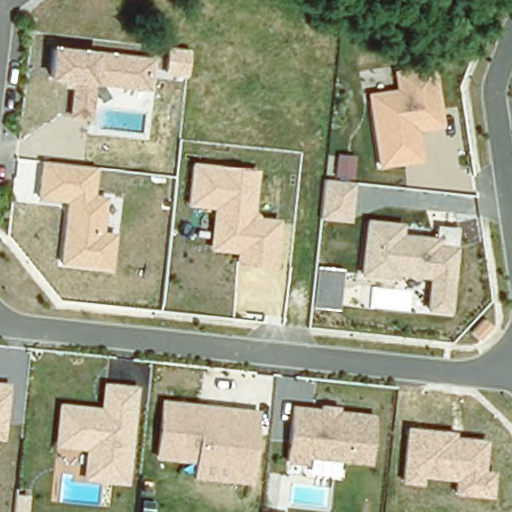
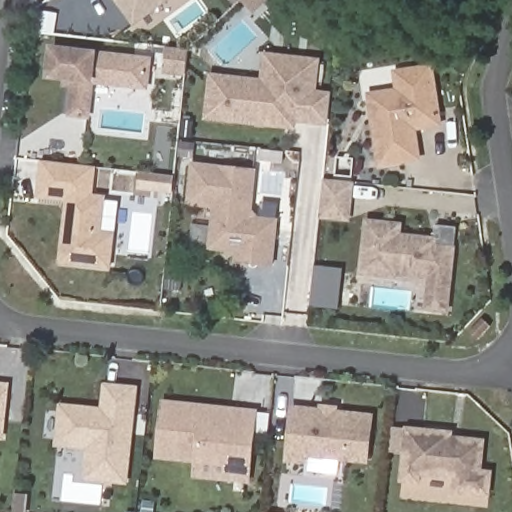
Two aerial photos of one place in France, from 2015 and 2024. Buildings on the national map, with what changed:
new [(149,13),(134,24),(116,0),(156,0),(145,8),(149,13)]
unchanged [(149,91),(95,86),(90,120),(66,118),(69,83),(46,81),(50,46),(154,57),(149,91)]
new [(165,50),(185,52),(183,77),(163,74),(165,50)]
new [(295,123),(295,129),(205,120),(209,72),(261,78),(264,53),(320,59),(317,90),(333,92),(328,127),(295,123)]
unchanged [(441,129),(416,132),(420,160),(377,167),(365,93),(395,89),(391,67),(431,62),(441,129)]
unchanged [(348,223),(316,218),(321,180),(334,182),(337,156),(354,158),(348,223)]
unchanged [(104,229),(116,232),(112,269),(58,264),(65,201),(35,198),(42,159),(96,166),(91,193),(106,195),(104,229)]
unchanged [(278,265),(234,260),(233,253),(207,249),(210,209),(185,205),(191,163),(257,171),(254,212),(258,212),(257,217),(279,219),(278,265)]
unchanged [(449,314),(421,310),(425,278),(395,275),(396,280),(360,276),(366,218),(403,222),(400,231),(432,236),(433,225),(457,227),(449,314)]
new [(313,268),(328,270),(338,271),(334,311),(310,308),(311,289),(313,268)]
unchanged [(2,440),(0,440),(0,383),(9,383),(2,440)]
unchanged [(127,486),(83,480),(86,451),(54,449),(60,404),(101,408),(106,383),(140,386),(127,486)]
unchanged [(251,484),(195,480),(195,464),(154,460),(163,399),(257,409),(251,484)]
unchanged [(370,466),(310,460),(310,466),(286,464),(291,406),(373,414),(370,466)]
unchanged [(483,472),(494,473),(491,495),(450,491),(451,479),(420,477),(420,486),(400,484),(406,427),(454,432),(453,437),(485,441),(483,472)]

